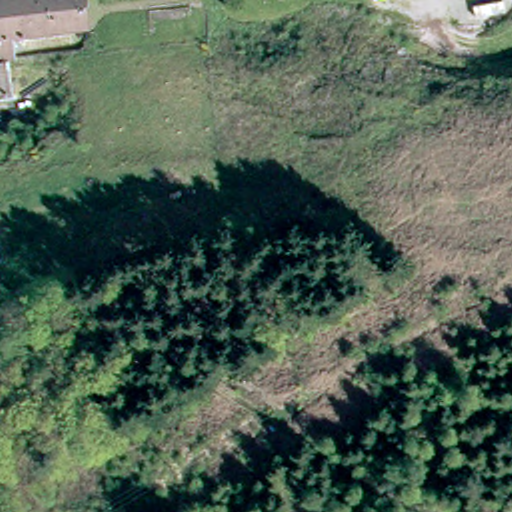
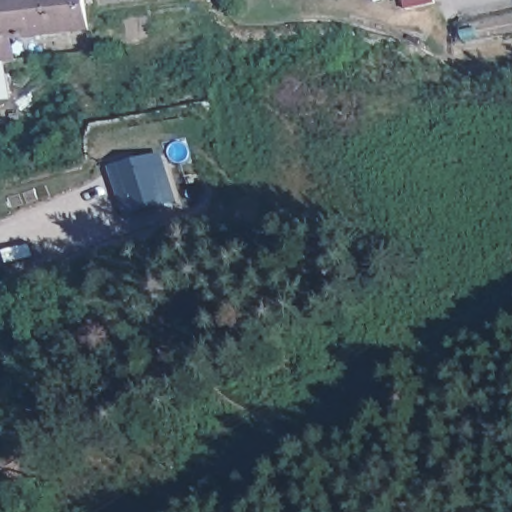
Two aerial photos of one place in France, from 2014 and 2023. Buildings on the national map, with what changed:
unchanged [(0,0),(84,0),(86,26),(7,35),(9,61),(2,61),(0,61),(0,0)]
unchanged [(0,96),(0,61),(2,61),(6,96),(0,96)]
new [(164,158),(174,197),(125,210),(115,171),(164,158)]

